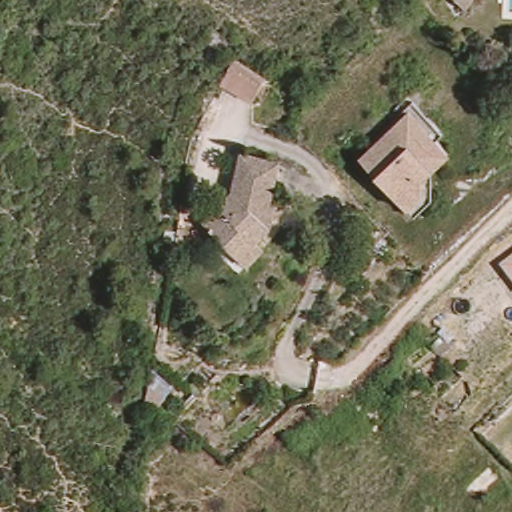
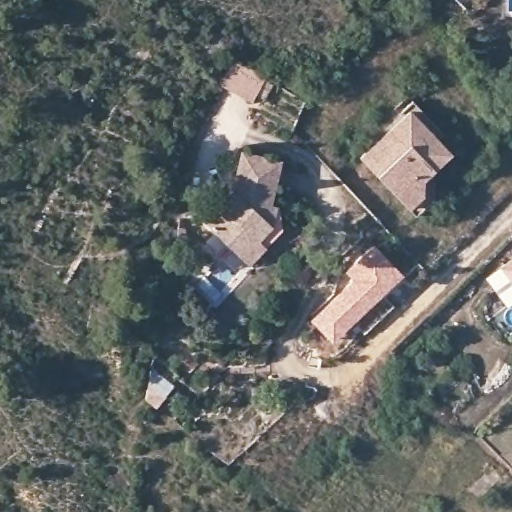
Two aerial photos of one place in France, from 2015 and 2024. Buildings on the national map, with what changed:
unchanged [(457,0),(472,0),(465,7),(457,0)]
unchanged [(221,83),(235,58),(265,76),(251,100),(221,83)]
unchanged [(414,115),(410,111),(417,105),(448,137),(441,144),(453,157),(437,172),(437,202),(420,219),(365,161),(414,115)]
unchanged [(242,262),(228,249),(198,220),(227,190),(237,151),(274,160),(263,202),(270,203),(265,223),(251,238),(259,244),(242,262)]
unchanged [(184,227),(190,254),(173,251),(178,226),(184,227)]
new [(350,278),(343,271),(372,243),(402,273),(331,341),(309,319),(350,278)]
unchanged [(512,257),(512,288),(497,267),(512,257)]
unchanged [(166,396),(157,406),(146,398),(149,381),(166,396)]

